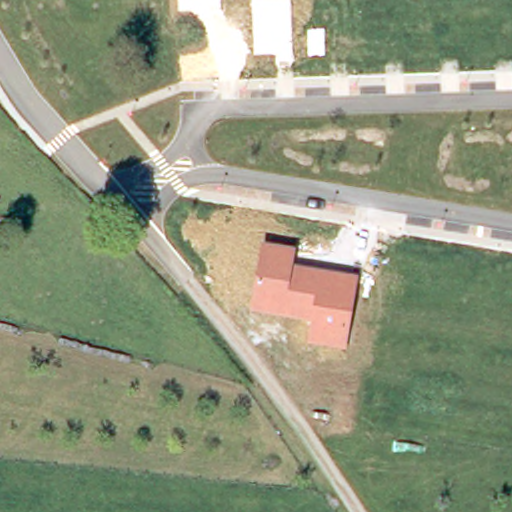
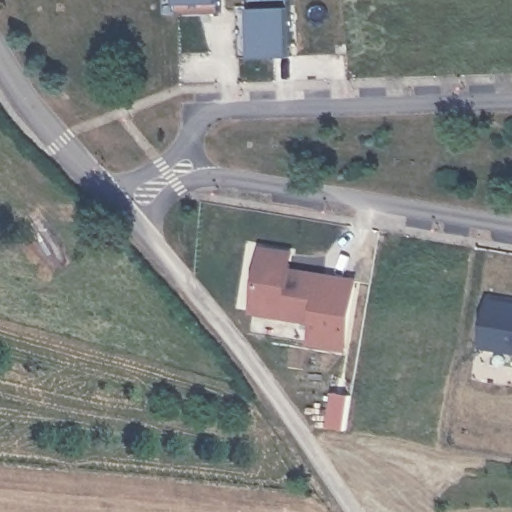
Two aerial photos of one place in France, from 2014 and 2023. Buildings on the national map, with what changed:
new [(177,4),(177,0),(220,0),(220,1),(221,10),(178,11),(177,4)]
new [(252,6),(291,5),(292,54),(253,56),(252,6)]
unchanged [(297,249),(293,266),(360,279),(348,350),(306,343),(310,323),(252,313),(263,244),(297,249)]
new [(489,298),(512,302),(512,353),(480,348),(489,298)]
new [(335,395),(354,397),(350,432),(330,431),(335,395)]

